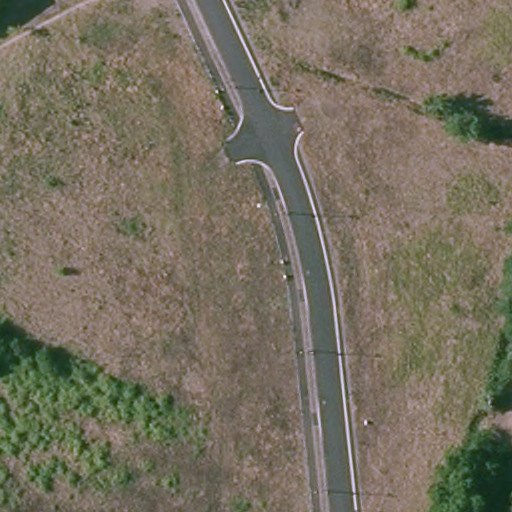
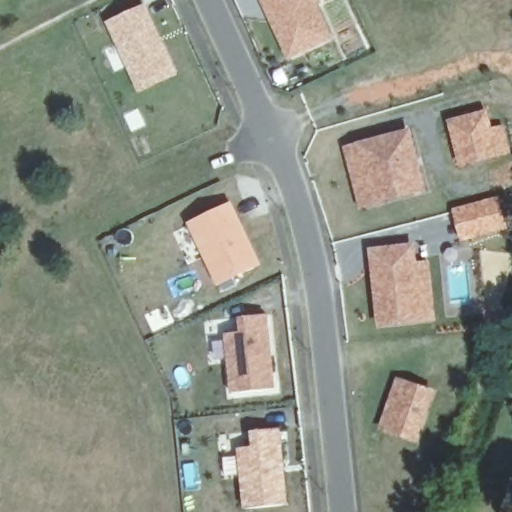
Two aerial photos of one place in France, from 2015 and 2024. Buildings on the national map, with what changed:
new [(317,1),(334,37),(294,57),(277,19),(270,6),(267,0),(319,0),(317,1)]
new [(143,7),(155,32),(153,37),(157,44),(160,42),(174,72),(141,88),(110,22),(143,7)]
new [(486,114),(497,155),(462,163),(451,124),(486,114)]
new [(424,190),(363,207),(347,150),(407,134),(424,190)]
new [(230,201),(261,265),(217,287),(185,223),(230,201)]
new [(412,247),(420,318),(381,323),(374,252),(412,247)]
new [(242,332),(240,316),(267,313),(271,346),(268,351),(268,356),(272,355),(275,387),(232,392),(229,360),(226,333),(242,332)]
new [(400,378),(432,390),(415,437),(392,429),(383,426),(386,416),(400,378)]
new [(254,446),(252,431),(278,427),(282,460),(280,465),(281,472),(283,471),(287,503),(245,507),(239,447),(254,446)]
demolished [(512,462),(512,498),(507,512),(505,512),(466,497),(483,451),(512,462)]

